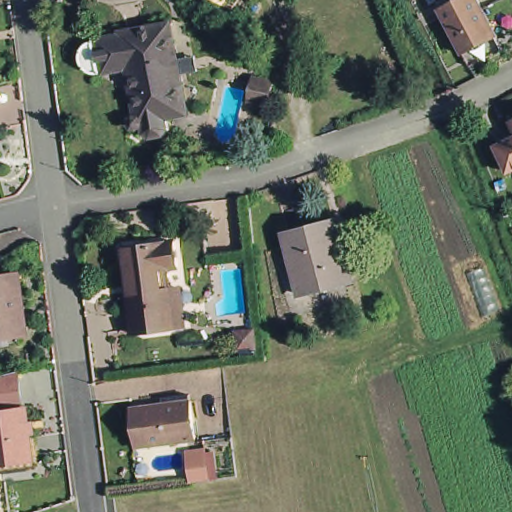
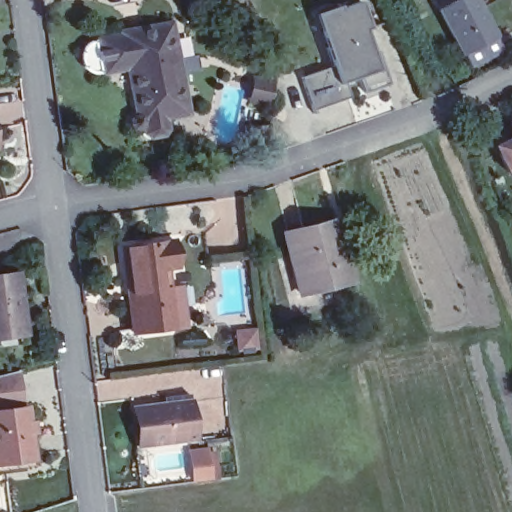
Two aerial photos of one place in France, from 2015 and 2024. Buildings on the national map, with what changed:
unchanged [(463,51),(440,6),(452,0),(479,0),(496,34),(503,47),(469,65),(463,51)]
new [(369,29),(363,30),(372,54),(378,52),(389,85),(365,93),(361,81),(346,86),(351,97),(314,112),(301,78),(332,67),(314,15),(337,7),(338,10),(360,3),(369,29)]
unchanged [(124,30),(125,27),(174,19),(190,109),(146,117),(146,120),(144,122),(143,123),(141,123),(138,121),(137,119),(136,116),(138,114),(139,112),(143,112),(134,62),(109,65),(103,34),(124,30)]
unchanged [(0,148),(0,113),(8,146),(0,148)]
unchanged [(493,169),(485,149),(497,142),(495,138),(512,130),(512,160),(493,169)]
unchanged [(333,215),(347,275),(298,286),(284,227),(333,215)]
unchanged [(181,303),(183,323),(133,330),(128,291),(131,290),(124,245),(171,237),(176,264),(166,265),(169,283),(178,283),(181,303)]
unchanged [(30,331),(0,335),(0,270),(23,268),(30,331)]
unchanged [(50,457),(0,463),(0,403),(33,399),(34,408),(35,413),(43,412),(50,457)]
unchanged [(133,410),(146,408),(193,405),(196,439),(151,445),(138,446),(133,410)]

